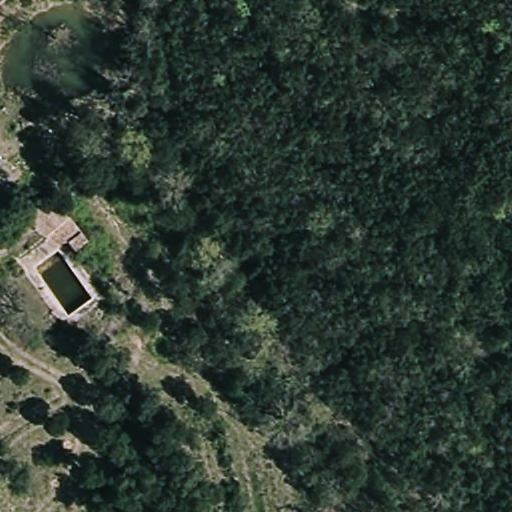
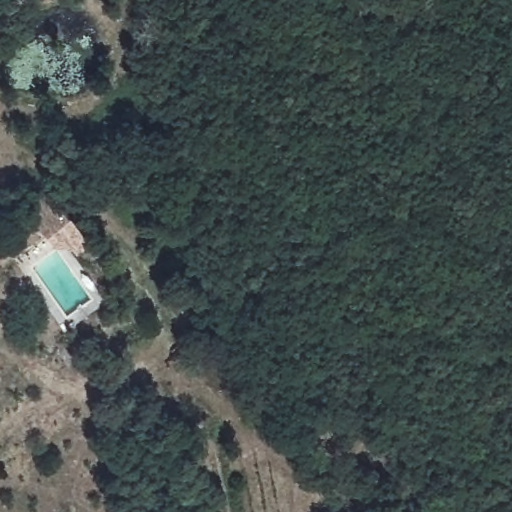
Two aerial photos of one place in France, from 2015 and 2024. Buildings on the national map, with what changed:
unchanged [(73,253),(65,244),(54,250),(23,221),(44,196),(78,228),(88,237),(73,253)]

